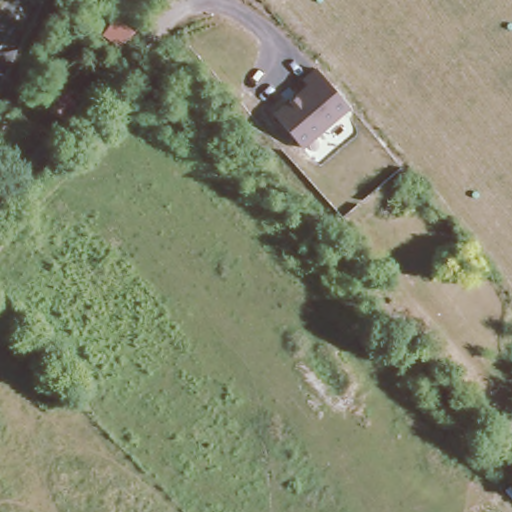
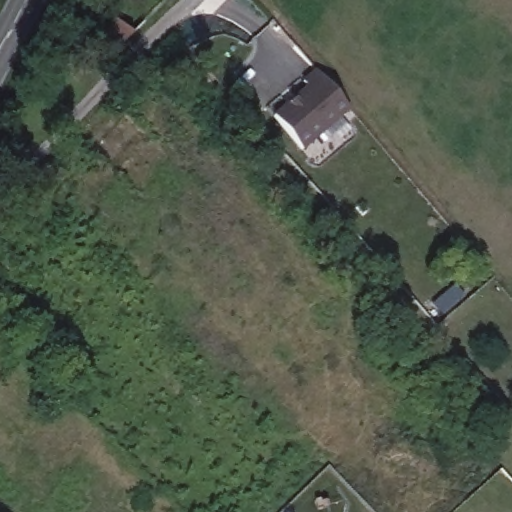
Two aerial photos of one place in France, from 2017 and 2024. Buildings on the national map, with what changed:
unchanged [(102,38),(120,21),(134,35),(119,50),(102,38)]
unchanged [(353,111),(306,153),(277,119),(311,90),(307,85),(320,73),(353,111)]

